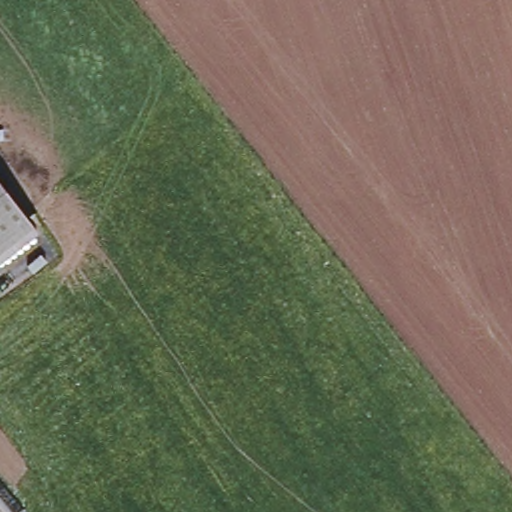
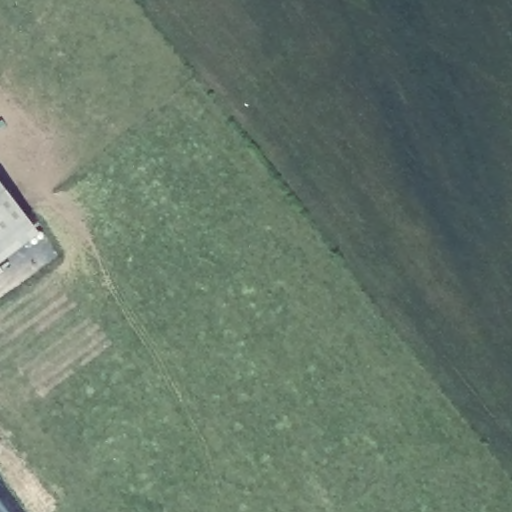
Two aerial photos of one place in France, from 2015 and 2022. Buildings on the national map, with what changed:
unchanged [(32,222),(0,246),(0,180),(32,222)]

